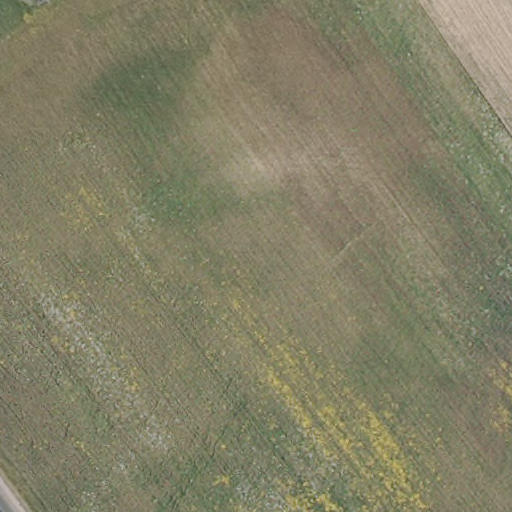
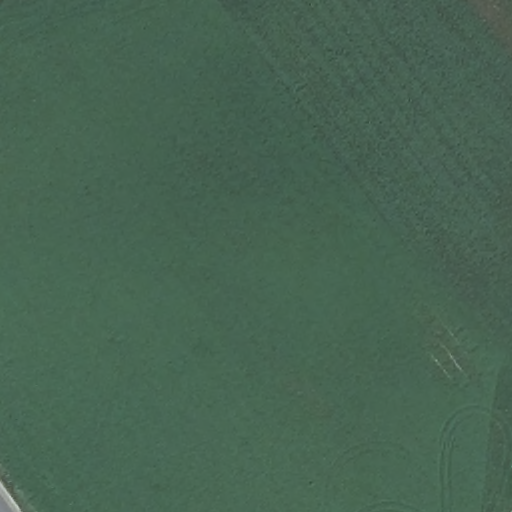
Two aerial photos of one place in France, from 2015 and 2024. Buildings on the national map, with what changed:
[]

